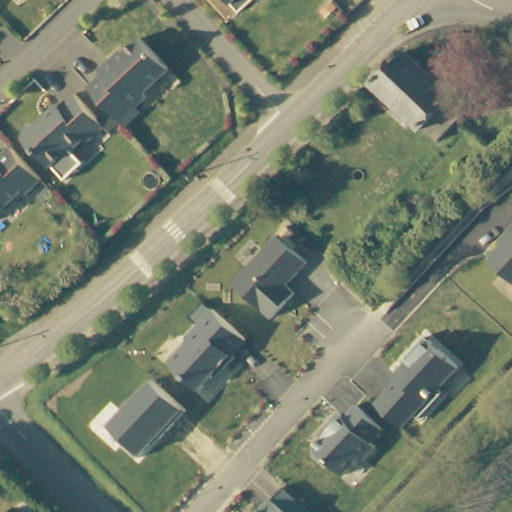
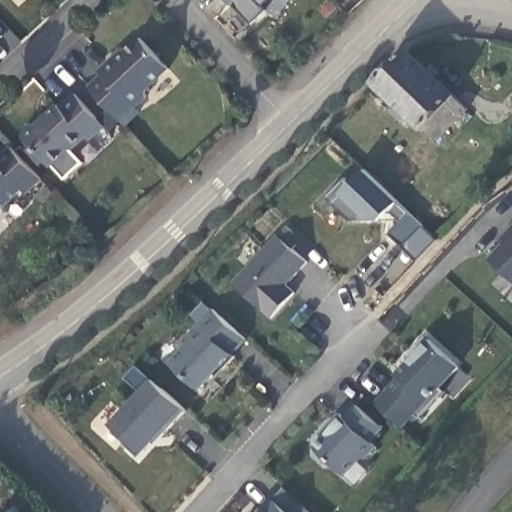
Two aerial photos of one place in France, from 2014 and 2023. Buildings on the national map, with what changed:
unchanged [(20,0),(26,0),(23,3),(20,0)]
unchanged [(232,2),(229,0),(251,0),(239,11),(232,2)]
unchanged [(107,72),(104,70),(120,54),(123,56),(144,35),(172,65),(148,89),(151,92),(140,105),(144,110),(131,122),(95,85),(107,72)]
unchanged [(415,62),(453,97),(425,126),(414,115),(410,119),(361,72),(393,41),(415,62)]
unchanged [(95,135),(61,168),(24,130),(36,119),(41,125),(68,99),(70,102),(80,92),(114,129),(101,142),(95,135)]
unchanged [(37,193),(33,189),(0,217),(0,161),(16,147),(49,182),(37,193)]
new [(354,182),(366,171),(398,202),(423,226),(404,246),(392,234),(404,221),(390,211),(381,221),(370,220),(352,221),(329,199),(347,177),(354,182)]
unchanged [(512,231),(512,279),(490,259),(512,231)]
unchanged [(239,286),(283,237),(311,265),(291,287),(298,293),(275,320),(239,286)]
unchanged [(249,338),(235,352),(238,355),(226,368),(223,366),(203,389),(172,362),(189,342),(189,337),(216,308),(249,338)]
unchanged [(378,406),(401,377),(398,375),(428,338),(461,366),(440,388),(446,392),(420,420),(417,416),(406,428),(378,406)]
unchanged [(115,425),(156,380),(190,411),(148,454),(115,425)]
unchanged [(315,447),(342,415),(346,420),(355,406),(385,430),(372,444),(378,448),(365,462),(358,458),(344,474),(315,447)]
unchanged [(265,508),(268,512),(287,487),(314,512),(262,512),(265,508)]
unchanged [(23,511),(24,512),(22,512),(23,511)]

